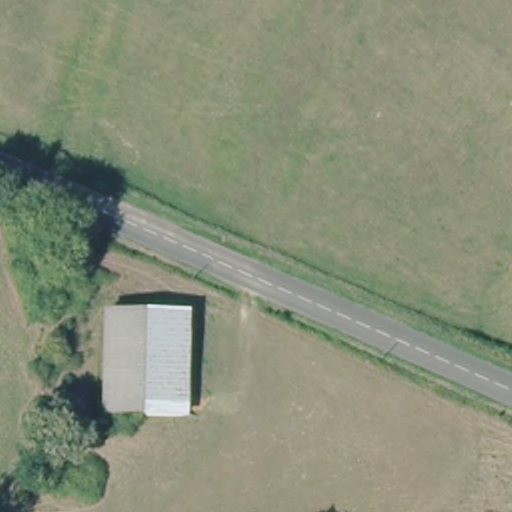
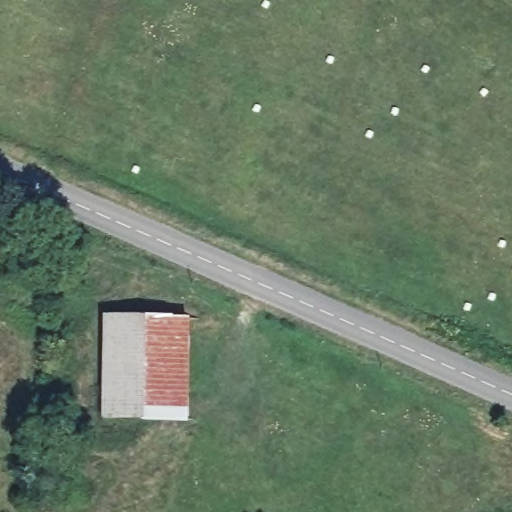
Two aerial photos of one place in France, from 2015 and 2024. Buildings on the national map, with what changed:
unchanged [(188,316),(187,420),(99,416),(101,314),(188,316)]

